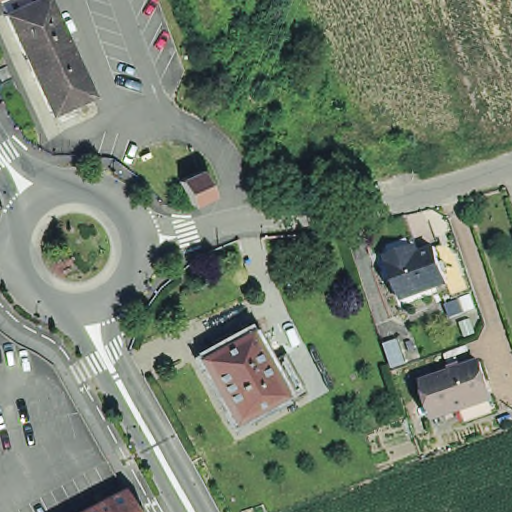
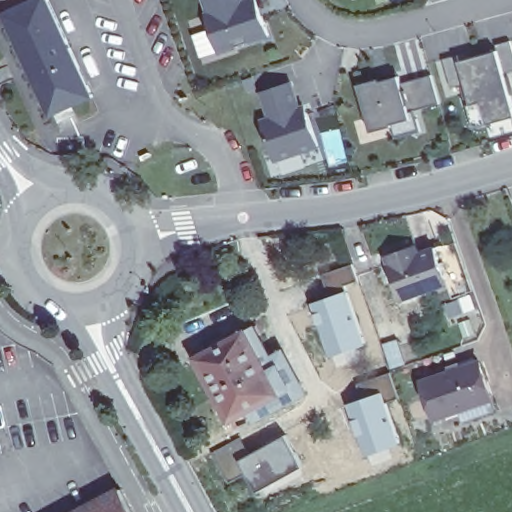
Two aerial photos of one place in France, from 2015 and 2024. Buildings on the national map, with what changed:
unchanged [(0,13),(0,0),(26,0),(0,13)]
unchanged [(0,17),(0,13),(26,0),(54,0),(95,95),(48,119),(0,17)]
new [(246,3),(256,0),(258,0),(270,38),(221,55),(208,17),(211,16),(206,0),(245,0),(246,3)]
demolished [(138,24),(163,16),(180,64),(155,72),(138,24)]
new [(500,52),(512,97),(512,119),(480,128),(461,62),(500,52)]
demolished [(144,76),(155,72),(180,64),(191,97),(154,107),(144,76)]
new [(439,104),(413,112),(420,132),(396,139),(392,127),(371,132),(358,85),(380,79),(381,82),(400,77),(402,83),(432,75),(439,104)]
new [(301,110),(306,108),(308,114),(320,147),(277,162),(264,122),(272,120),(263,94),(292,84),(301,110)]
unchanged [(441,278),(400,295),(386,258),(392,257),(390,251),(410,242),(412,249),(427,242),(441,278)]
new [(353,264),(360,282),(346,285),(348,292),(366,346),(331,358),(310,302),(330,297),(321,275),(353,264)]
unchanged [(205,342),(201,333),(217,325),(222,333),(236,326),(245,322),(262,351),(273,345),(295,386),(246,411),(240,400),(221,409),(188,351),(205,342)]
unchanged [(466,415),(462,405),(438,412),(425,373),(481,355),(495,395),(499,403),(466,415)]
new [(391,371),(400,398),(388,404),(400,443),(365,456),(346,405),(361,399),(355,383),(391,371)]
new [(240,439),(250,455),(286,437),(303,470),(258,493),(247,475),(228,483),(211,454),(240,439)]
unchanged [(137,512),(78,512),(123,487),(137,512)]

